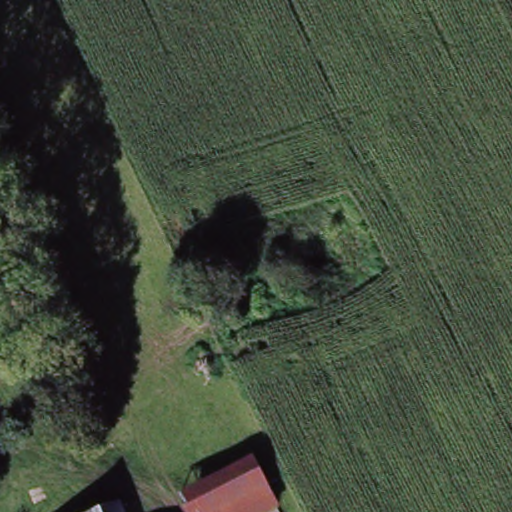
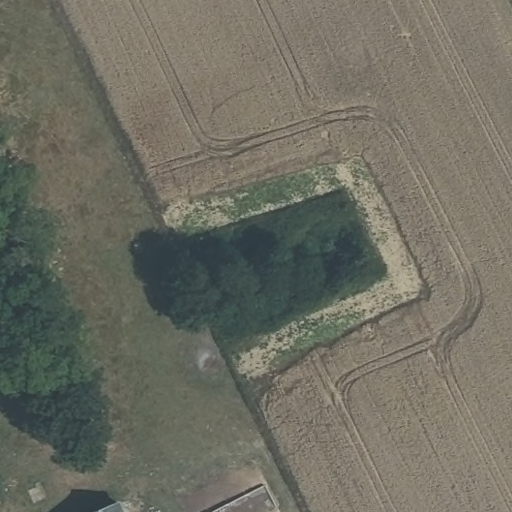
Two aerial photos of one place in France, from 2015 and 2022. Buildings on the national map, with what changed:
unchanged [(15,327),(0,334),(0,288),(10,314),(15,327)]
unchanged [(278,512),(191,512),(185,501),(256,463),(281,510),(278,512)]
unchanged [(121,512),(100,512),(118,504),(121,512)]

